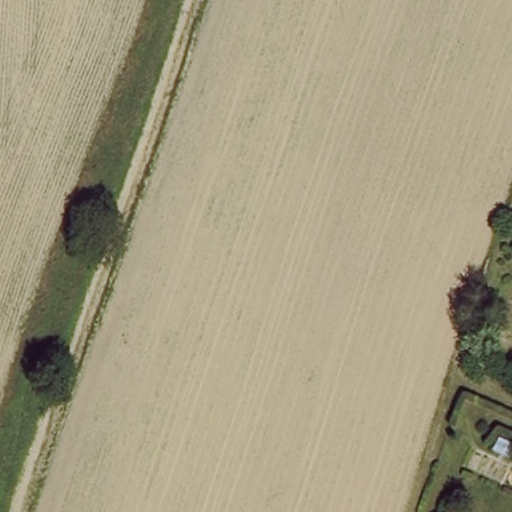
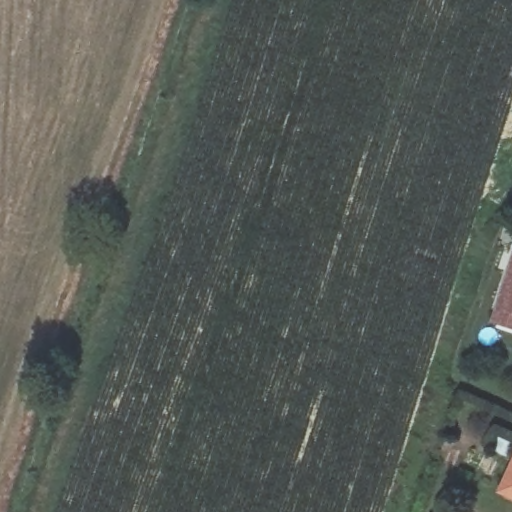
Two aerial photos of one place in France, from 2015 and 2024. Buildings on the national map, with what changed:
new [(494,321),(512,261),(512,328),(494,321)]
new [(512,503),(497,497),(505,476),(512,460),(512,503)]

